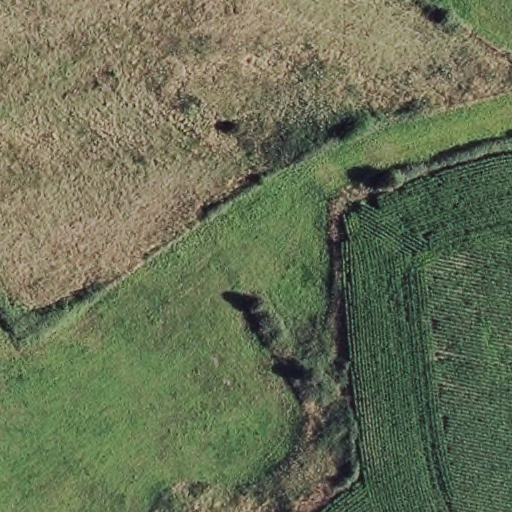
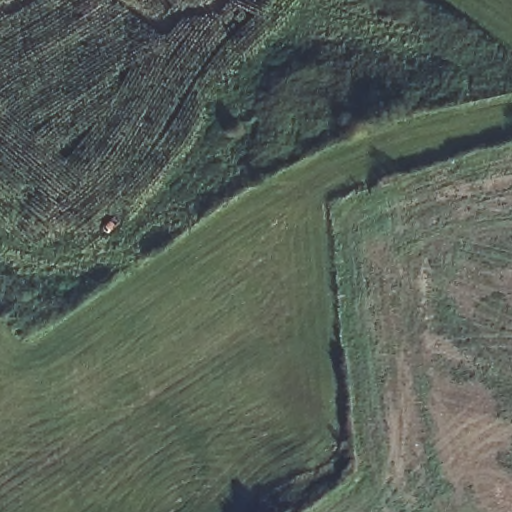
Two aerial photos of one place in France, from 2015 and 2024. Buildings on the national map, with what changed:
[]

